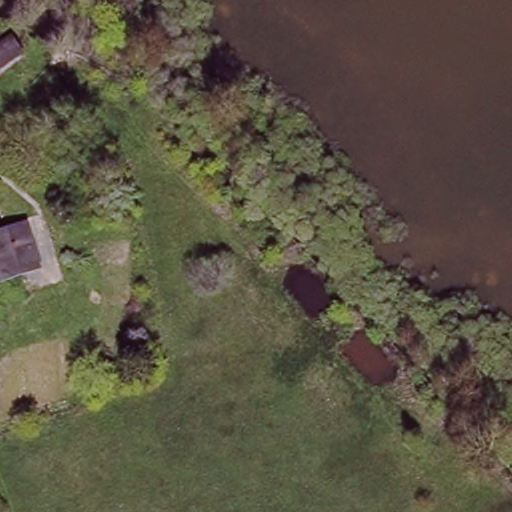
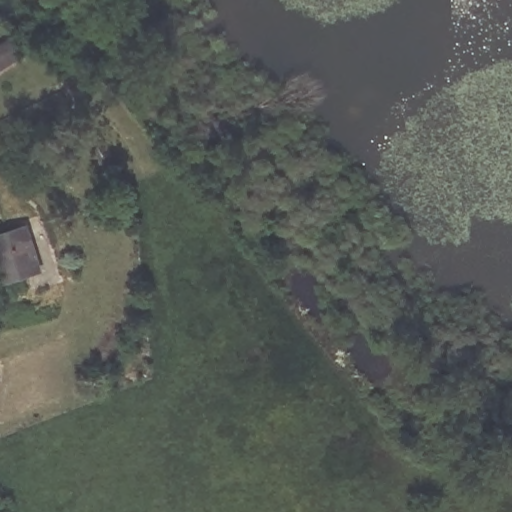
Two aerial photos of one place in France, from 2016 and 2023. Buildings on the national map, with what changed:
unchanged [(8,37),(22,56),(0,70),(0,43),(8,37)]
unchanged [(29,224),(42,273),(0,284),(0,234),(29,224)]

